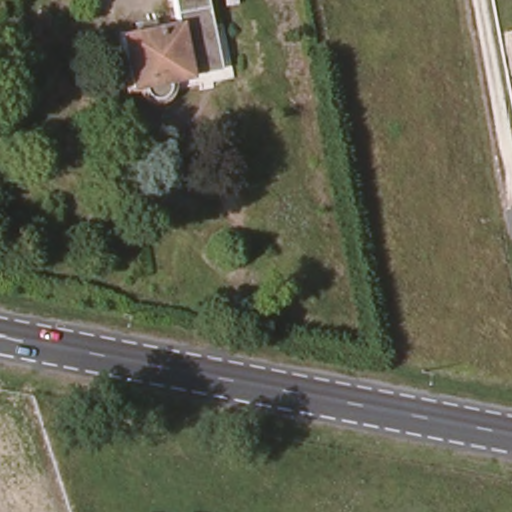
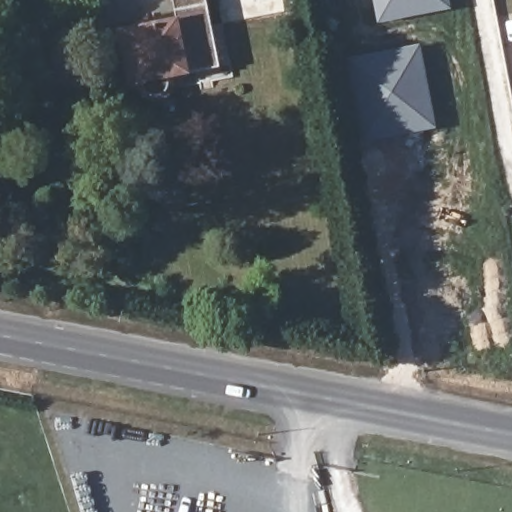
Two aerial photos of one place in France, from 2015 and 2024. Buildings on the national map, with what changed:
unchanged [(172,0),(206,0),(208,10),(177,17),(172,0)]
new [(450,10),(377,25),(373,0),(449,0),(450,10)]
unchanged [(121,38),(137,34),(137,29),(147,27),(146,22),(156,20),(158,31),(179,26),(177,17),(208,10),(220,71),(172,81),(171,90),(169,94),(166,97),(163,99),(158,101),(153,100),(150,99),(148,97),(145,94),(142,87),(131,89),(121,38)]
new [(436,130),(365,146),(346,59),(419,44),(436,130)]

